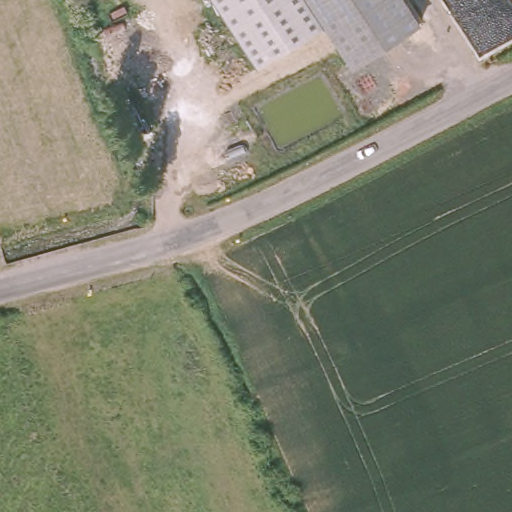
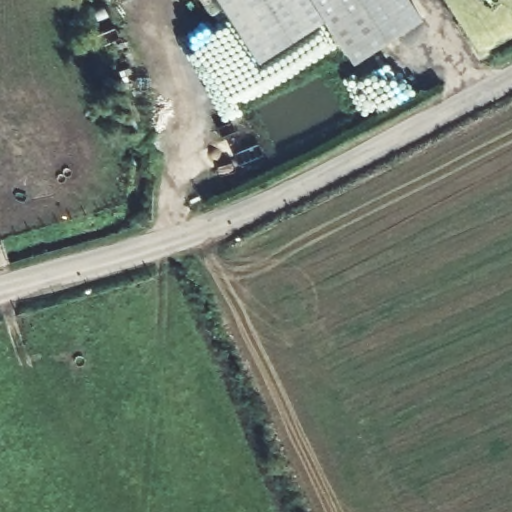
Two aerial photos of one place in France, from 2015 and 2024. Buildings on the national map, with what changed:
unchanged [(262,66),(218,0),(410,0),(424,21),(356,66),(326,23),(262,66)]

